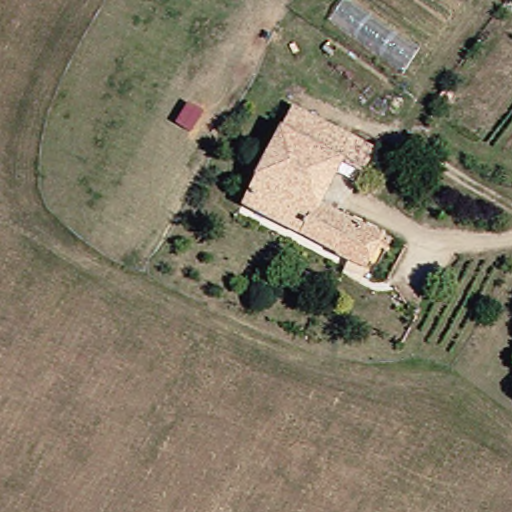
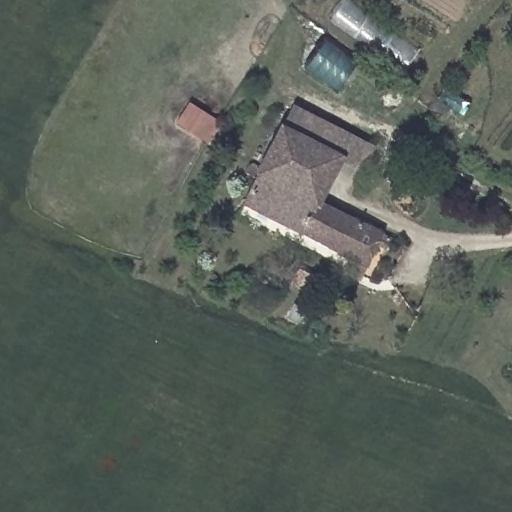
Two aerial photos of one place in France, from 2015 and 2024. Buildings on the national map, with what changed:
unchanged [(346,139),(331,169),(320,193),(382,227),(365,261),(246,200),(292,110),(346,139)]
unchanged [(375,153),(362,184),(331,169),(346,139),(375,153)]

